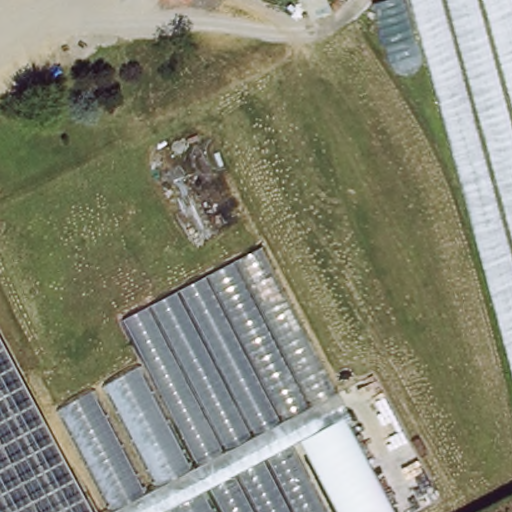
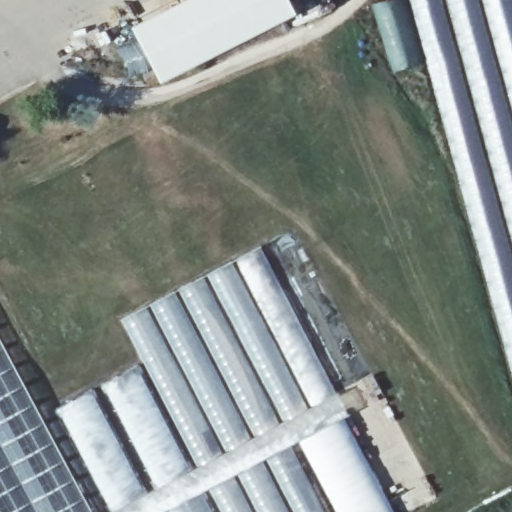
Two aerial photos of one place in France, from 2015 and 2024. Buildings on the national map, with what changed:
new [(186,0),(287,0),(295,15),(158,84),(131,29),(186,0)]
new [(386,0),(402,0),(424,61),(396,71),(372,5),(386,0)]
unchanged [(412,0),(512,0),(512,361),(412,0)]
unchanged [(146,363),(121,322),(267,242),(342,384),(100,512),(0,512),(0,330),(46,413),(146,363)]
unchanged [(401,512),(165,512),(347,414),(401,512)]

